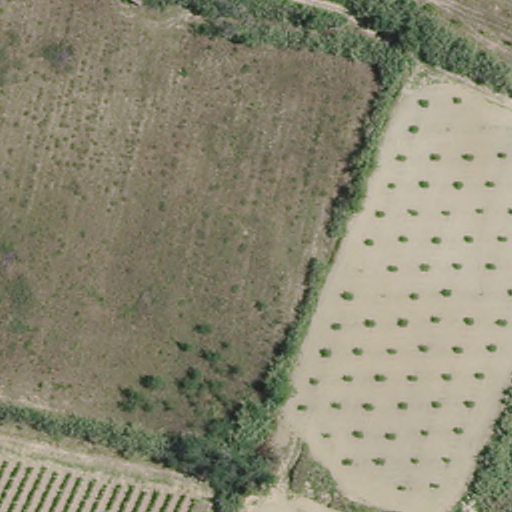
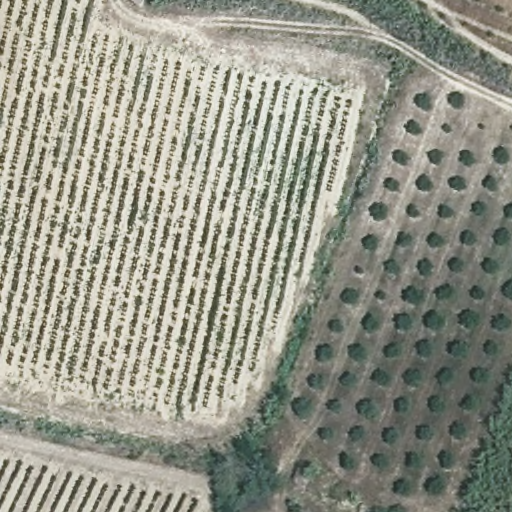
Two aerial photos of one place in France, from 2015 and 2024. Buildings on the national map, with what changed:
unchanged [(135,0),(146,0),(142,5),(135,0)]

